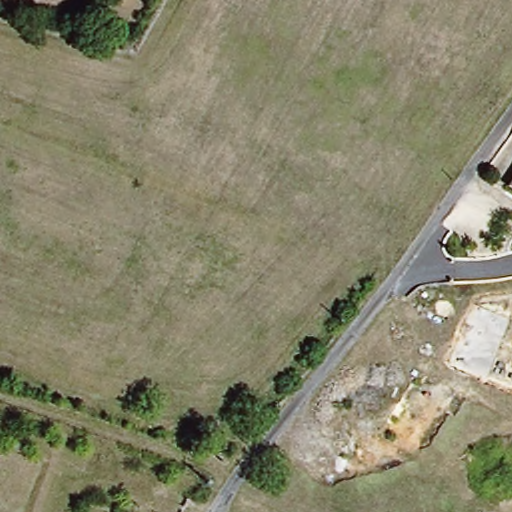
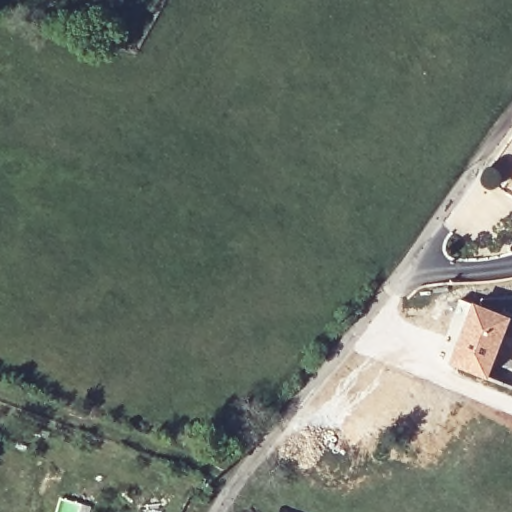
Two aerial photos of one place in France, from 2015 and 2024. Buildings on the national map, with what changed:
unchanged [(512,177),(512,185),(508,181),(512,177)]
new [(467,370),(451,364),(475,302),(483,305),(512,316),(512,319),(487,378),(467,370)]

